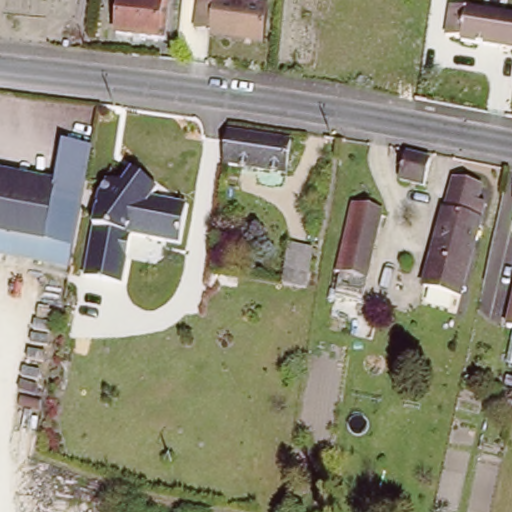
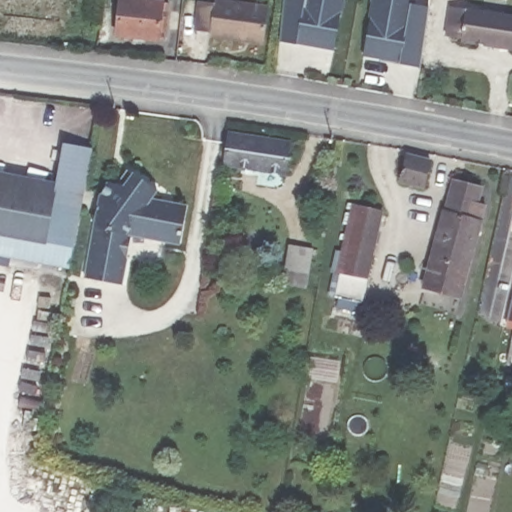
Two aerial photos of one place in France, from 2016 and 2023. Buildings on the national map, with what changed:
unchanged [(167,4),(163,44),(117,39),(121,0),(127,0),(137,1),(138,0),(153,0),(153,3),(167,4)]
unchanged [(215,0),(268,8),(263,45),(210,38),(210,32),(194,29),(196,1),(215,0)]
new [(342,17),(336,50),(283,41),(287,0),(347,0),(345,17),(342,17)]
new [(432,6),(423,68),(390,61),(390,60),(365,56),(375,0),(416,0),(415,3),(432,6)]
unchanged [(512,19),(512,51),(458,41),(464,11),(512,19)]
unchanged [(292,142),(288,175),(224,168),(229,132),(292,142)]
unchanged [(60,142),(90,148),(73,249),(0,235),(0,171),(54,181),(60,142)]
unchanged [(433,185),(400,182),(403,158),(436,162),(433,185)]
unchanged [(85,278),(103,181),(120,183),(132,170),(158,190),(153,199),(187,205),(180,243),(130,236),(122,286),(85,278)]
unchanged [(453,193),(454,179),(475,183),(473,198),(486,201),(470,290),(430,283),(443,191),(453,193)]
unchanged [(376,212),(363,306),(337,300),(340,278),(345,278),(349,248),(345,247),(350,208),(376,212)]
unchanged [(70,270),(0,257),(0,235),(73,249),(71,261),(70,270)]
unchanged [(510,324),(512,314),(512,325),(510,324)]

